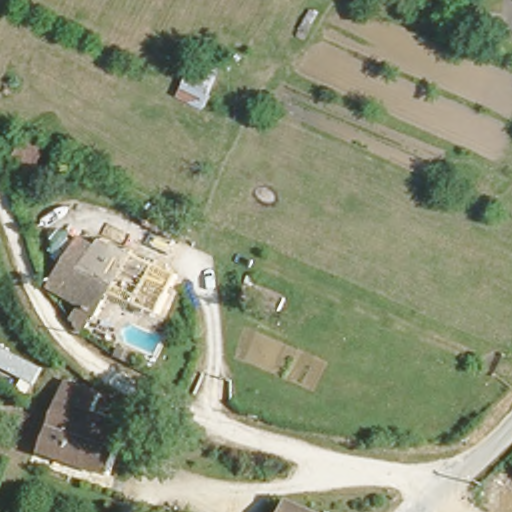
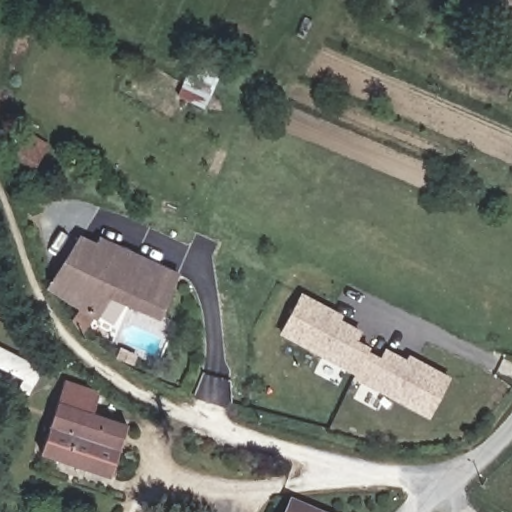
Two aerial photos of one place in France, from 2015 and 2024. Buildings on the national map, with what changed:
unchanged [(181,81),(194,47),(218,58),(205,91),(202,100),(178,89),(181,81)]
unchanged [(29,140),(33,134),(52,145),(49,149),(39,163),(33,171),(15,160),(19,154),(29,140)]
unchanged [(77,310),(82,302),(50,282),(58,268),(51,264),(77,222),(179,270),(162,310),(116,288),(91,323),(77,310)]
new [(334,308),(332,312),(363,329),(357,341),(375,351),(374,354),(380,357),(385,347),(405,357),(408,353),(451,376),(427,418),(279,334),(301,291),(334,308)]
unchanged [(101,388),(96,407),(129,420),(110,471),(41,445),(66,376),(101,388)]
unchanged [(287,512),(293,501),(317,512),(287,512)]

